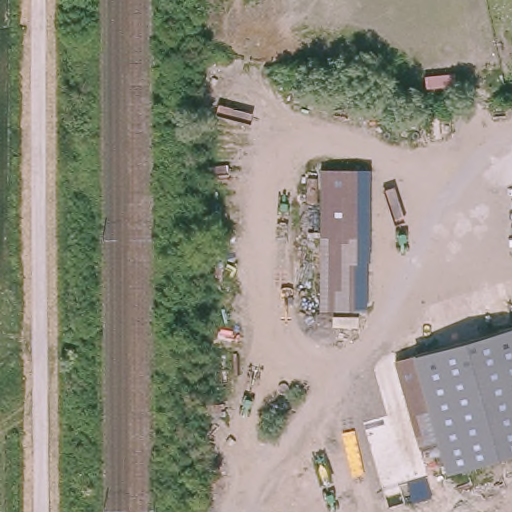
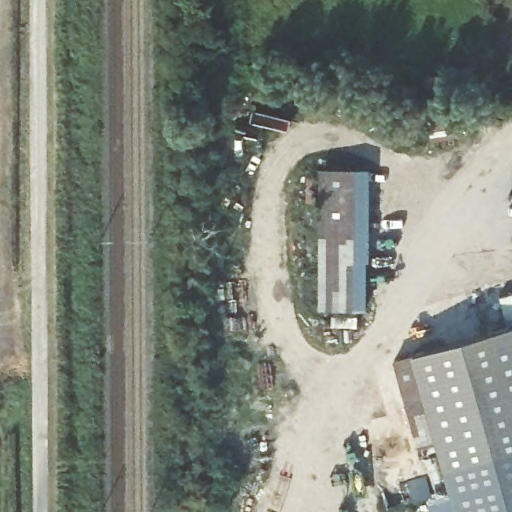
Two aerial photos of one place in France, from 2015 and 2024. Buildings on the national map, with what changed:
unchanged [(371,168),(368,308),(321,309),(320,168),(371,168)]
unchanged [(439,444),(420,449),(395,359),(413,353),(512,327),(512,452),(447,471),(439,444)]
new [(431,502),(453,495),(447,471),(512,452),(512,512),(434,512),(431,502)]

